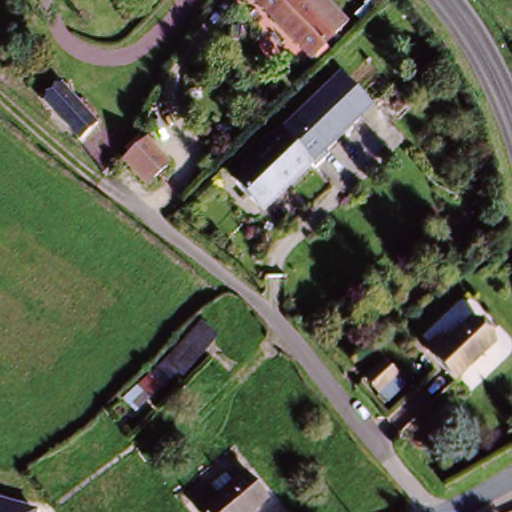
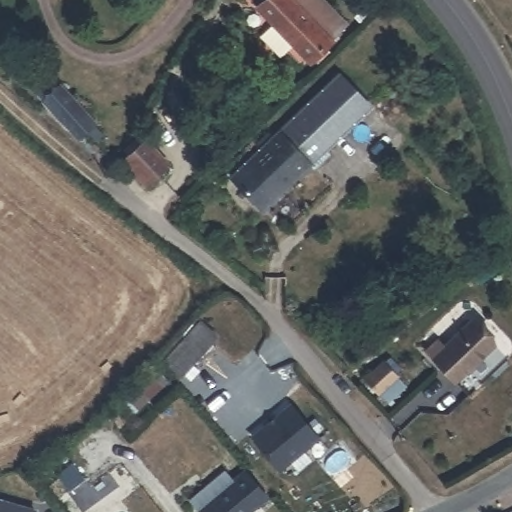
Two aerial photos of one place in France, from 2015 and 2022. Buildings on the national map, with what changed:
unchanged [(350,25),(315,61),(250,0),(324,0),(350,25)]
unchanged [(365,106),(258,217),(222,183),(328,71),(365,106)]
unchanged [(64,109),(58,104),(67,94),(110,134),(95,150),(57,116),(64,109)]
unchanged [(156,179),(142,193),(114,166),(127,154),(156,179)]
unchanged [(497,337),(460,375),(432,345),(443,335),(450,341),(477,315),(497,337)]
unchanged [(195,326),(210,342),(204,348),(211,355),(200,364),(195,357),(176,375),(160,358),(195,326)]
unchanged [(176,375),(135,412),(120,395),(160,358),(176,375)]
unchanged [(402,383),(383,400),(367,382),(385,365),(402,383)]
new [(250,438),(291,403),(321,437),(280,472),(250,438)]
new [(63,468),(78,457),(90,472),(76,484),(63,468)]
unchanged [(451,483),(444,470),(457,465),(464,478),(451,483)]
unchanged [(188,512),(182,504),(207,483),(217,495),(243,475),(265,501),(251,512),(188,512)]
unchanged [(0,512),(0,497),(37,507),(35,512),(0,512)]

